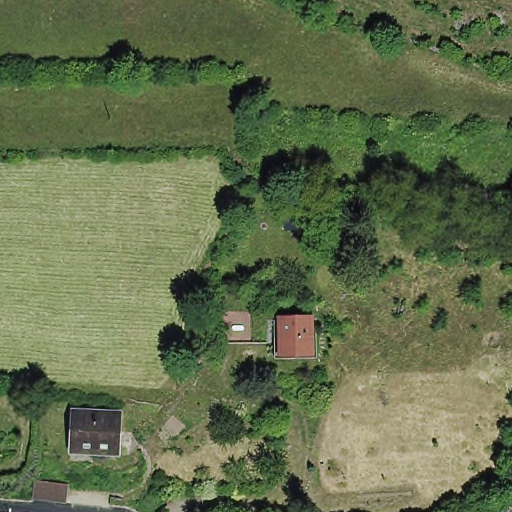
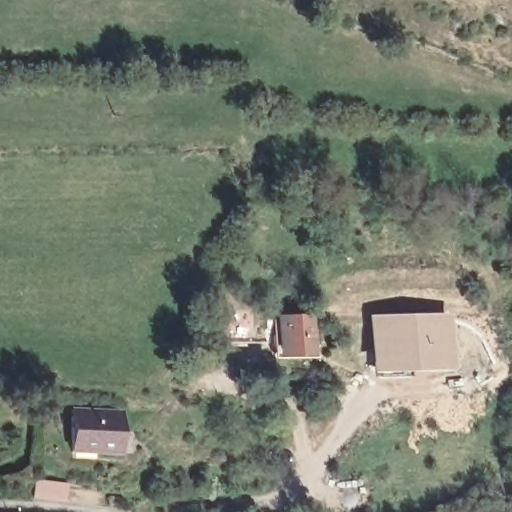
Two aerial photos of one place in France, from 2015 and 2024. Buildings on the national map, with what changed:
unchanged [(224,343),(224,311),(252,311),(252,343),(224,343)]
new [(448,316),(450,373),(372,372),(361,317),(448,316)]
unchanged [(310,352),(276,353),(275,336),(275,321),(283,321),(310,320),(310,352)]
unchanged [(117,415),(115,456),(67,453),(68,412),(117,415)]
unchanged [(35,485),(65,487),(64,502),(33,500),(35,485)]

